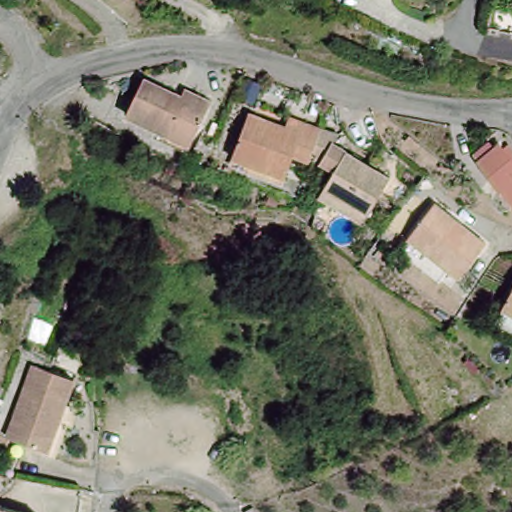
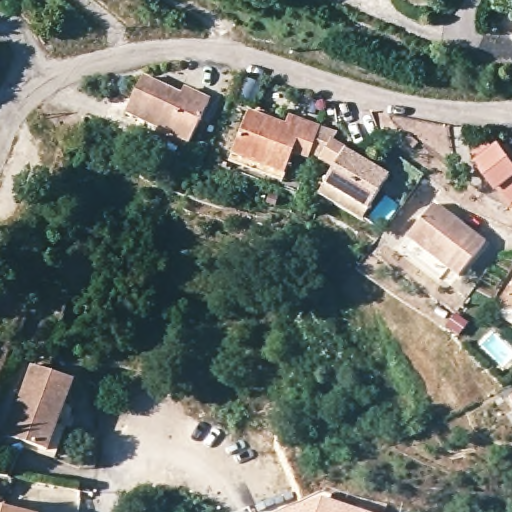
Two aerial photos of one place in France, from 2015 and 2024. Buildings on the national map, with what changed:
unchanged [(144,84),(186,104),(190,96),(211,106),(189,148),(126,115),(144,84)]
unchanged [(288,116),(294,104),(313,112),(327,118),(313,149),(311,155),(297,146),(286,165),(236,142),(255,102),(288,116)]
unchanged [(333,163),(313,149),(327,118),(352,130),(345,139),(392,175),(364,210),(356,220),(314,187),(323,177),(333,163)]
unchanged [(493,149),(501,145),(506,153),(512,150),(512,201),(511,202),(501,193),(471,150),(486,140),(493,149)]
unchanged [(465,262),(413,223),(441,187),(493,228),(465,262)]
unchanged [(501,300),(512,284),(512,309),(501,300)]
unchanged [(74,381),(49,452),(6,437),(34,365),(74,381)]
new [(512,401),(512,405),(511,402),(512,401)]
new [(320,497),(363,512),(284,512),(320,497)]
unchanged [(0,500),(37,512),(0,512),(0,500)]

